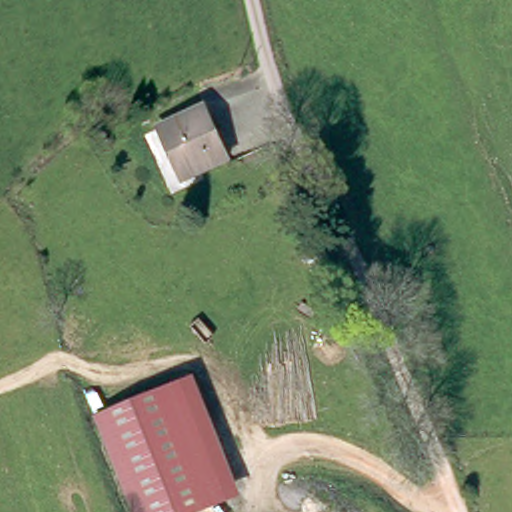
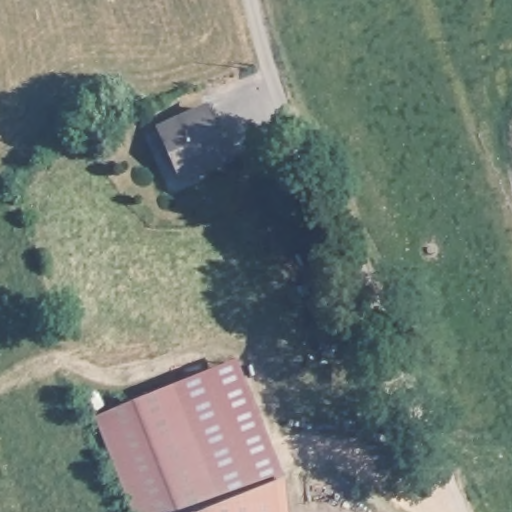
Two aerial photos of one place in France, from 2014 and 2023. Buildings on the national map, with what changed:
unchanged [(220,158),(173,176),(153,124),(200,106),(220,158)]
new [(237,360),(286,480),(287,512),(214,512),(242,502),(194,380),(237,360)]
unchanged [(242,502),(214,512),(130,512),(95,417),(194,380),(242,502)]

